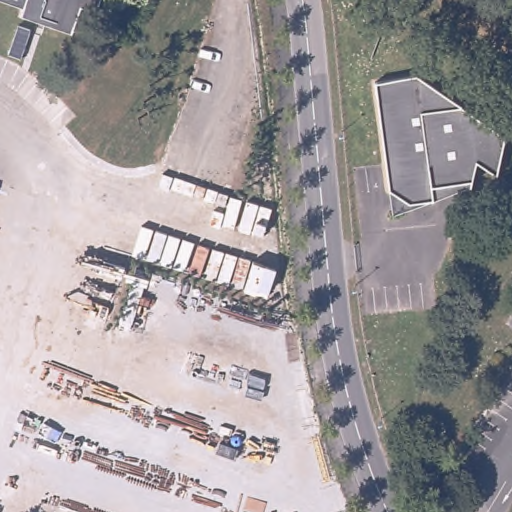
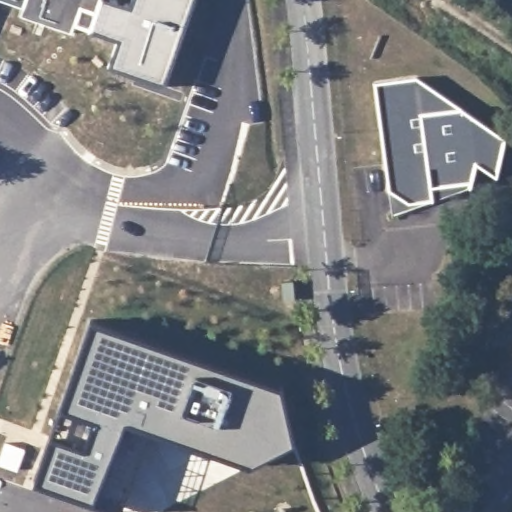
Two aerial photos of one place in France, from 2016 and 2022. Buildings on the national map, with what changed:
unchanged [(92,8),(77,3),(69,29),(18,13),(21,2),(13,0),(95,0),(92,8)]
new [(77,3),(92,8),(95,0),(117,0),(133,4),(134,0),(194,0),(165,84),(111,65),(121,37),(94,28),(90,30),(75,25),(74,30),(69,29),(77,3)]
new [(52,23),(46,30),(104,49),(85,106),(60,98),(66,83),(39,74),(40,60),(37,58),(13,50),(2,47),(11,18),(23,21),(34,25),(36,19),(52,23)]
unchanged [(386,189),(376,81),(418,77),(508,133),(497,180),(477,167),(473,183),(471,190),(429,200),(388,211),(386,189)]
new [(94,321),(282,385),(293,440),(249,461),(146,427),(119,512),(115,512),(89,502),(34,481),(62,407),(94,321)]

